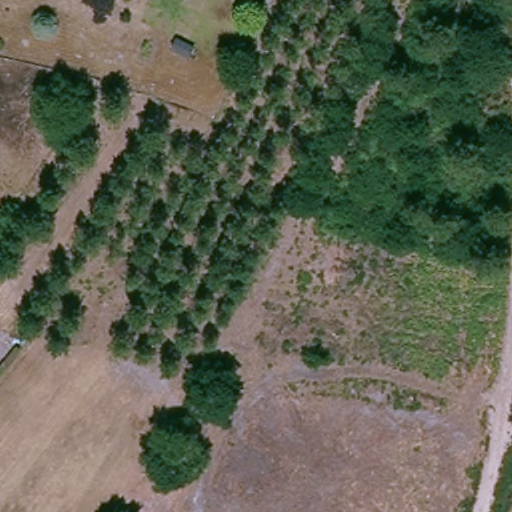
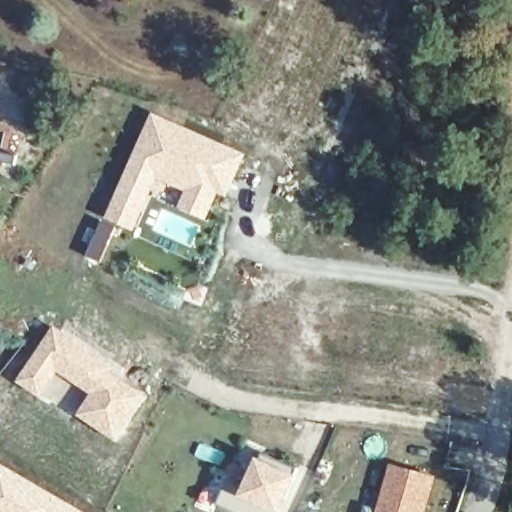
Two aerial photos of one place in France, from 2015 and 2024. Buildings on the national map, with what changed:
new [(113,197),(151,111),(246,152),(225,197),(219,195),(206,222),(176,208),(183,192),(158,181),(134,232),(116,225),(99,262),(83,255),(101,217),(113,197)]
new [(54,323),(108,359),(148,393),(115,443),(74,415),(88,395),(60,376),(41,400),(14,382),(54,323)]
new [(217,503),(227,482),(242,489),(256,457),(295,475),(280,512),(235,512),(217,503)]
new [(0,462),(89,512),(0,512),(0,462)]
new [(425,512),(377,512),(391,465),(434,476),(425,512)]

